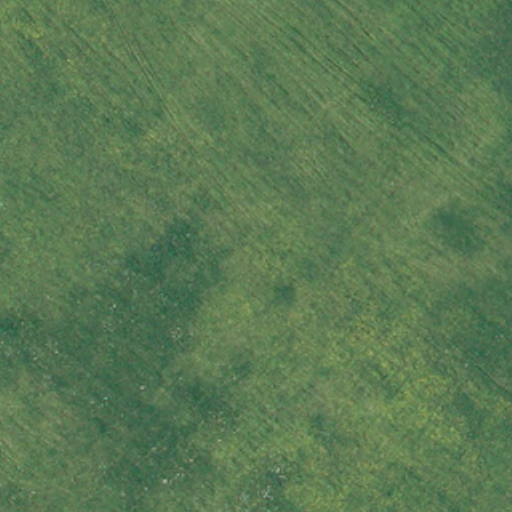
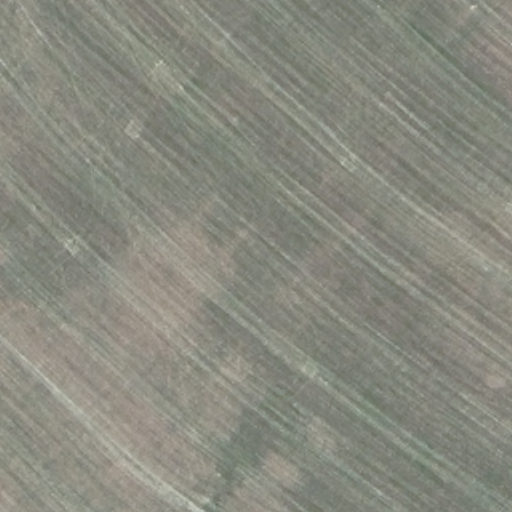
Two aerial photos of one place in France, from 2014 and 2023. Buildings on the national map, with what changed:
[]

